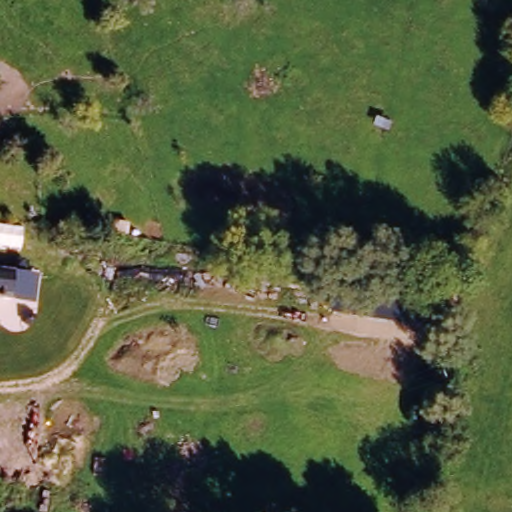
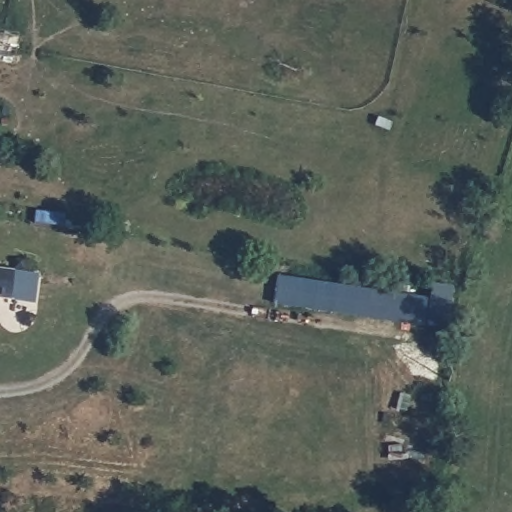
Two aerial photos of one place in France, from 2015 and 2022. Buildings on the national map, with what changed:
unchanged [(30,309),(0,304),(0,278),(33,283),(30,309)]
new [(451,303),(447,331),(273,305),(277,278),(451,303)]

